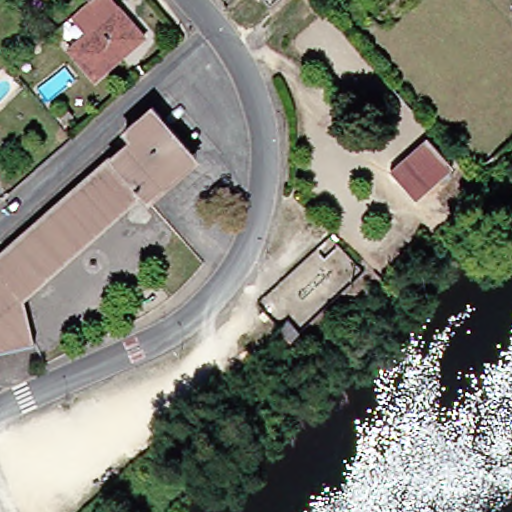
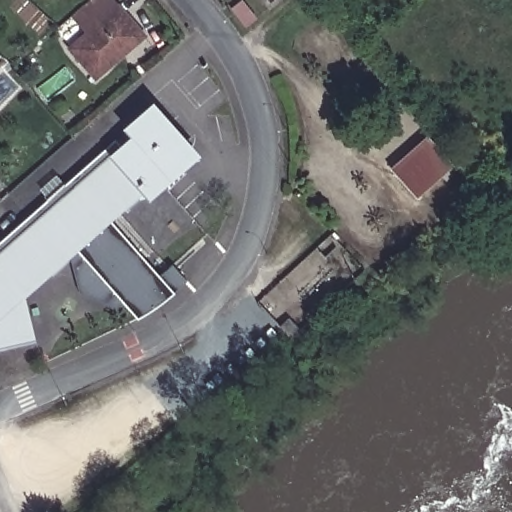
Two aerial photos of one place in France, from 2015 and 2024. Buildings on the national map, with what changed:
unchanged [(87,39),(73,22),(99,0),(107,0),(118,13),(145,43),(95,85),(69,54),(87,39)]
unchanged [(81,4),(77,0),(85,0),(81,4)]
unchanged [(270,0),(288,0),(272,14),(264,4),(270,0)]
unchanged [(110,160),(120,151),(114,143),(124,134),(121,131),(131,122),(148,107),(156,116),(195,162),(148,204),(140,195),(18,302),(34,344),(0,353),(0,257),(110,160)]
unchanged [(427,139),(448,165),(446,168),(450,174),(443,180),(438,174),(412,196),(391,169),(427,139)]
new [(136,318),(133,312),(79,292),(70,257),(110,221),(174,293),(136,318)]
unchanged [(298,337),(290,345),(278,333),(287,325),(298,337)]

